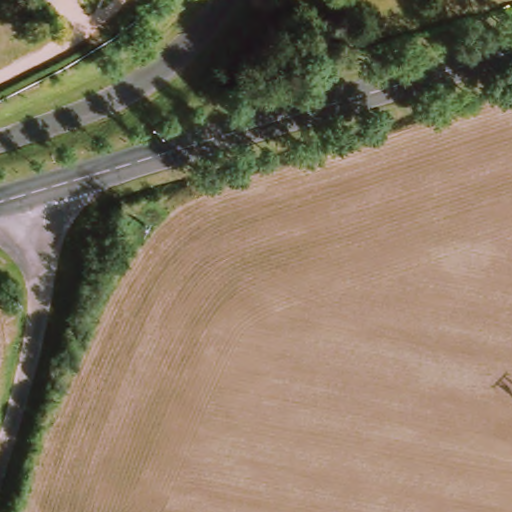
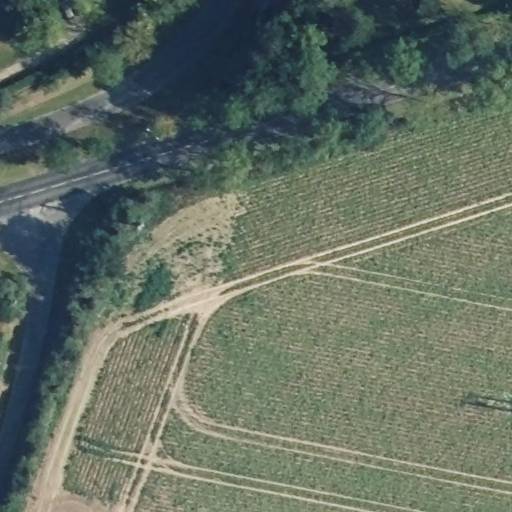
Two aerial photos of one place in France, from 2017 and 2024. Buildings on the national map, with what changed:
unchanged [(265,0),(282,0),(276,8),(265,0)]

